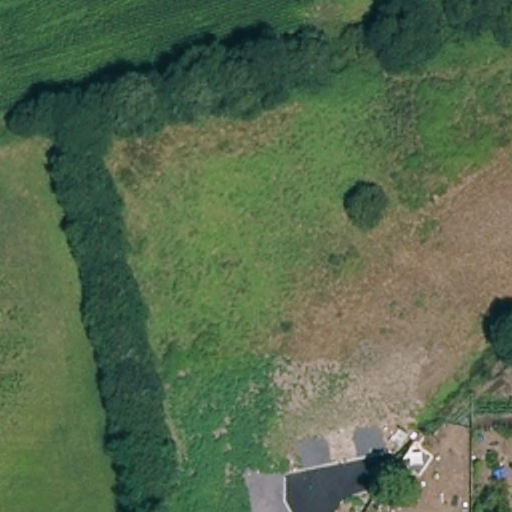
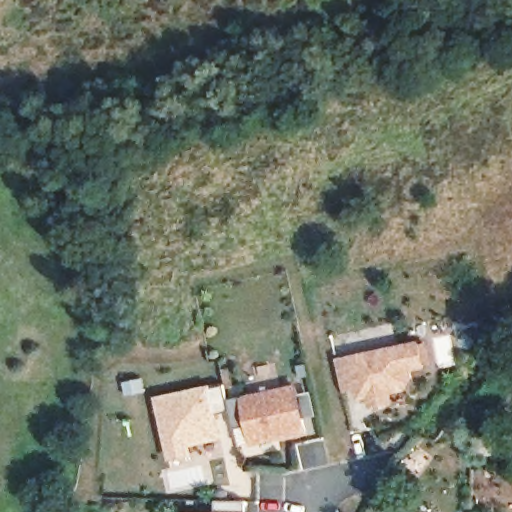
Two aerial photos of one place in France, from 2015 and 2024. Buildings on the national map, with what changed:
new [(382,414),(380,404),(368,407),(366,400),(365,394),(351,398),(341,357),(421,338),(427,361),(414,364),(416,372),(412,384),(414,395),(399,399),(402,409),(382,414)]
new [(229,384),(233,399),(235,411),(219,415),(225,437),(193,445),(196,455),(177,459),(163,401),(229,384)]
new [(249,397),(300,385),(302,393),(316,390),(322,413),(308,417),(311,429),(259,442),(255,425),(240,429),(235,411),(233,399),(249,396),(249,397)]
new [(215,502),(246,502),(246,512),(215,512),(215,502)]

